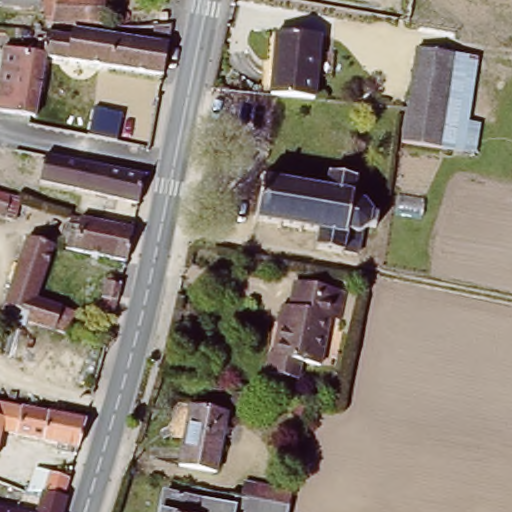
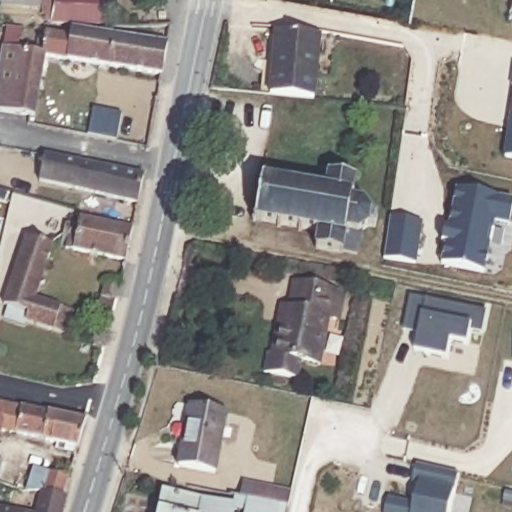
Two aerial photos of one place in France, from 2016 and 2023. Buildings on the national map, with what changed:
unchanged [(0,11),(0,0),(41,0),(42,12),(0,11)]
unchanged [(92,7),(92,2),(99,2),(100,31),(45,29),(49,15),(53,0),(71,0),(70,9),(92,7)]
demolished [(504,0),(502,5),(493,0),(504,0)]
new [(510,2),(511,0),(512,0),(512,2),(510,2)]
new [(510,14),(512,11),(512,14),(510,14)]
unchanged [(266,96),(275,32),(317,37),(309,101),(266,96)]
unchanged [(41,63),(31,121),(0,117),(0,52),(27,56),(39,58),(43,39),(67,42),(69,35),(164,49),(158,81),(41,63)]
demolished [(455,53),(439,147),(400,142),(418,46),(455,53)]
demolished [(479,56),(469,121),(480,122),(475,152),(439,147),(455,53),(479,56)]
new [(91,110),(119,116),(114,143),(85,137),(91,110)]
new [(506,159),(512,116),(512,160),(506,159)]
unchanged [(140,203),(47,182),(52,159),(145,178),(140,203)]
unchanged [(310,228),(309,231),(305,231),(305,227),(290,224),(289,227),(285,227),(285,224),(267,220),(262,222),(260,219),(265,217),(266,207),(275,207),(268,195),(270,187),(267,183),(269,181),(272,184),(292,188),(293,185),(297,186),(297,189),(312,192),(313,189),(317,189),(317,192),(333,196),(337,178),(364,183),(360,201),(363,201),(362,206),(372,207),(380,216),(386,217),(384,228),(377,227),(367,232),(365,254),(350,251),(349,253),(322,248),(326,231),(310,228)]
new [(442,265),(447,242),(450,243),(452,232),(450,231),(457,190),(512,201),(512,214),(510,222),(497,219),(485,273),(442,265)]
demolished [(5,219),(0,217),(0,195),(10,197),(5,219)]
unchanged [(127,262),(60,249),(65,225),(67,225),(70,217),(134,230),(127,262)]
new [(389,262),(393,220),(425,223),(421,265),(389,262)]
unchanged [(67,334),(54,330),(25,321),(24,327),(4,320),(8,307),(4,306),(28,237),(54,246),(35,298),(61,307),(74,312),(67,334)]
unchanged [(332,286),(326,312),(317,311),(307,360),(290,356),(295,329),(270,323),(271,316),(264,314),(267,298),(275,300),(277,301),(282,276),(332,286)]
unchanged [(114,317),(99,312),(107,282),(121,286),(114,317)]
new [(471,332),(470,345),(452,342),(449,359),(415,352),(418,333),(405,331),(410,297),(487,311),(485,335),(471,332)]
unchanged [(265,348),(270,323),(295,329),(290,356),(288,356),(285,372),(252,365),(255,347),(265,348)]
unchanged [(0,408),(0,404),(12,407),(12,411),(0,408)]
unchanged [(223,412),(211,472),(175,465),(187,406),(223,412)]
unchanged [(45,452),(46,443),(34,441),(34,440),(5,434),(7,423),(0,421),(0,408),(12,411),(12,407),(77,420),(65,456),(45,452)]
unchanged [(5,434),(0,459),(0,421),(7,423),(5,434)]
new [(457,490),(452,512),(386,512),(388,497),(408,502),(416,465),(459,473),(457,490)]
unchanged [(41,472),(70,482),(60,512),(30,512),(41,472)]
unchanged [(153,511),(153,485),(243,507),(252,490),(293,493),(287,512),(153,512),(153,511)]
unchanged [(0,509),(22,512),(0,512),(0,509)]

